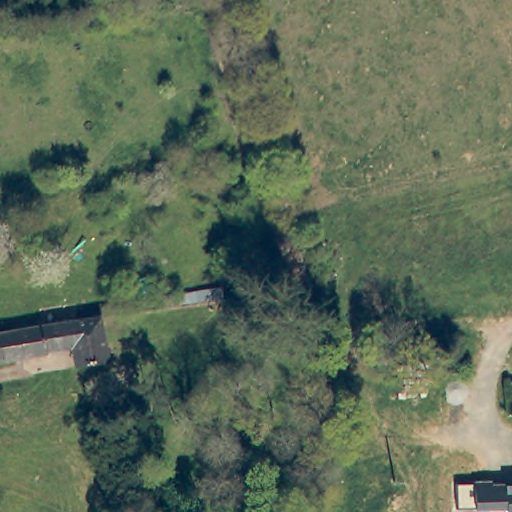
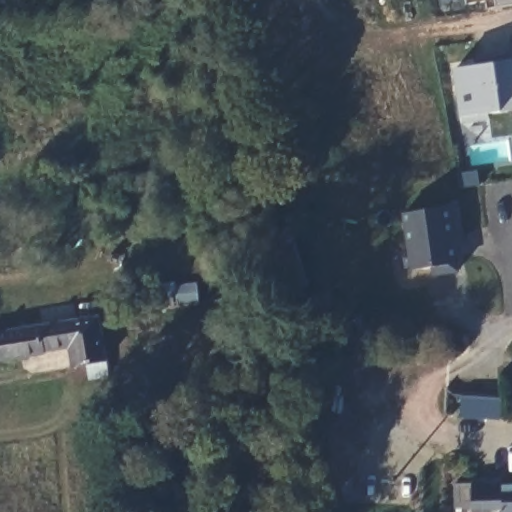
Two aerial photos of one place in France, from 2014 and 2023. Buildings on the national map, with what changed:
unchanged [(200,1),(205,16),(82,31),(81,19),(200,1)]
new [(495,64),(512,62),(512,109),(500,111),(464,116),(455,68),(495,64)]
new [(452,208),(457,241),(455,242),(459,272),(435,276),(434,268),(413,271),(405,215),(452,208)]
unchanged [(0,359),(0,329),(94,317),(105,361),(71,366),(67,350),(0,359)]
unchanged [(482,509),(456,510),(457,485),(512,482),(512,512),(483,512),(482,509)]

